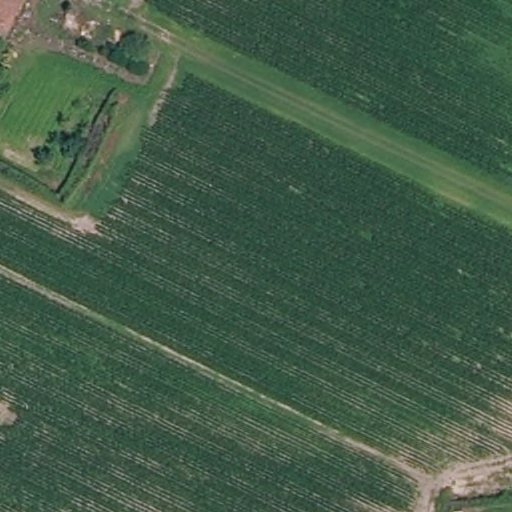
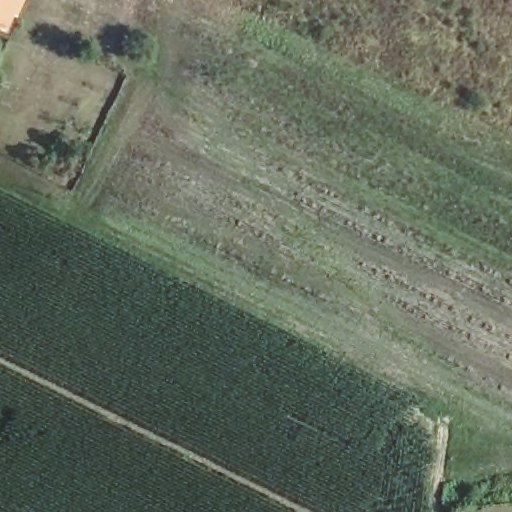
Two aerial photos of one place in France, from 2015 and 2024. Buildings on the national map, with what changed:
unchanged [(7,17),(0,32),(0,0),(18,0),(10,18),(7,17)]

